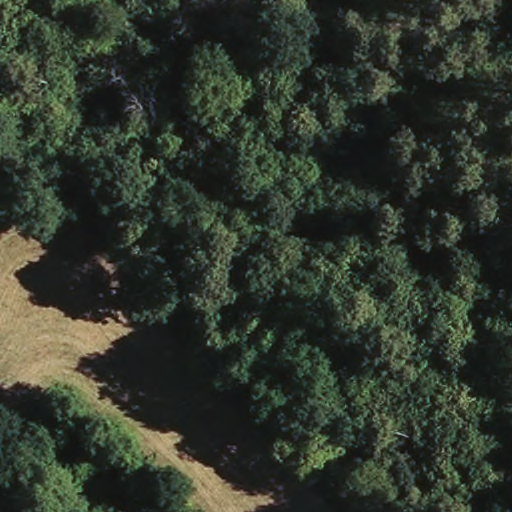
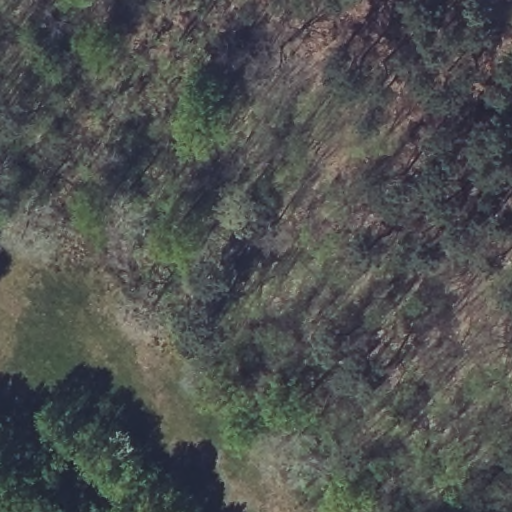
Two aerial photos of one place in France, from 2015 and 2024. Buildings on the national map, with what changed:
unchanged [(31,451),(57,420),(101,455),(75,487),(31,451)]
unchanged [(101,455),(133,482),(124,494),(145,512),(105,512),(75,487),(101,455)]

